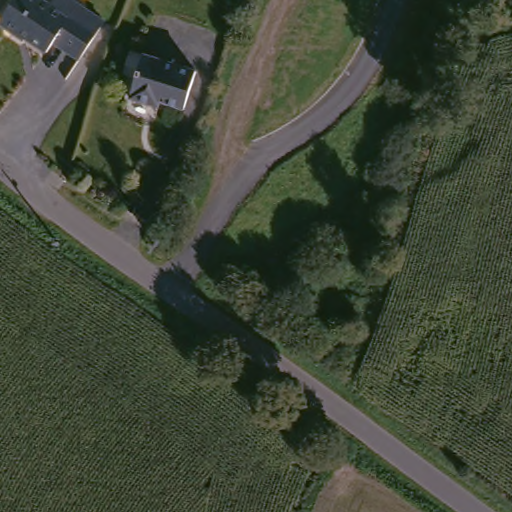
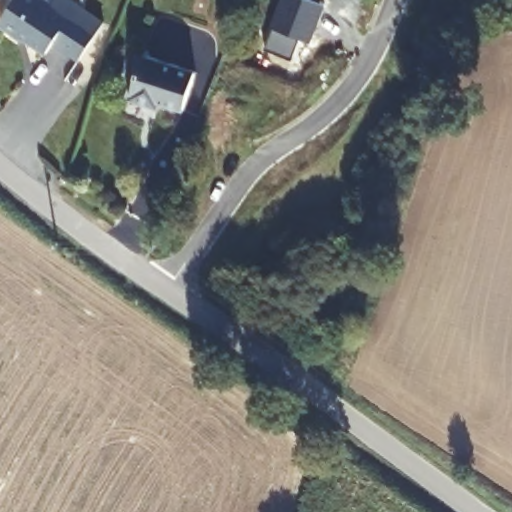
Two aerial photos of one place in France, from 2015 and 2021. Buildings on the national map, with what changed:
unchanged [(55,0),(69,0),(105,24),(80,62),(52,44),(45,55),(0,25),(0,20),(14,0),(37,0),(49,8),(55,0)]
new [(273,6),(276,0),(322,0),(320,3),(325,5),(311,42),(300,39),(291,61),(262,50),(279,9),(273,6)]
unchanged [(196,75),(184,114),(152,102),(150,108),(130,101),(145,59),(196,75)]

